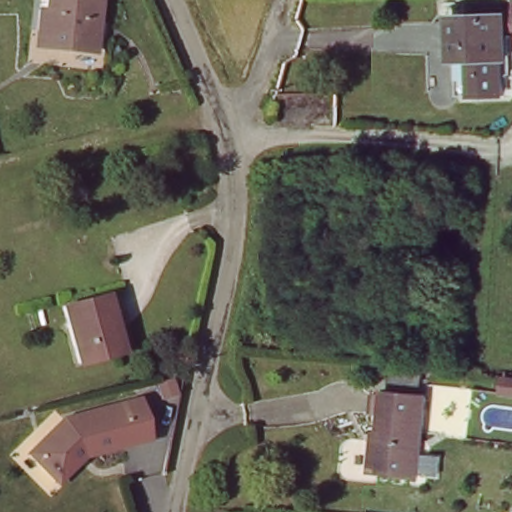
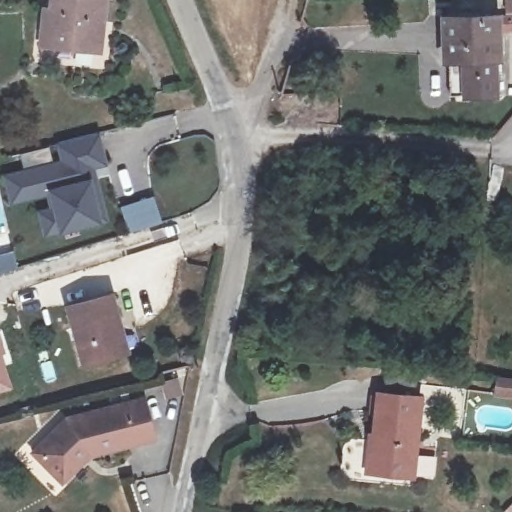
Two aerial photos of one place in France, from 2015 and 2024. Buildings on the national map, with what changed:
unchanged [(105,31),(98,30),(94,50),(59,44),(43,42),(45,22),(47,7),(55,7),(56,0),(109,0),(105,31)]
unchanged [(449,14),(494,13),(496,96),(468,97),(451,97),(450,56),(449,14)]
new [(23,169),(19,154),(49,147),(50,162),(60,159),(56,144),(100,132),(108,166),(96,169),(109,219),(101,221),(59,232),(44,237),(35,199),(11,204),(3,175),(23,169)]
new [(152,200),(160,224),(131,233),(123,209),(152,200)]
demolished [(68,228),(70,245),(39,252),(35,235),(68,228)]
new [(12,252),(18,268),(0,274),(0,255),(12,252)]
unchanged [(122,299),(126,318),(121,321),(127,352),(84,361),(74,310),(122,299)]
new [(9,354),(6,355),(9,363),(6,365),(14,388),(0,393),(0,329),(9,354)]
new [(497,395),(499,377),(512,379),(512,395),(497,395)]
unchanged [(379,445),(383,406),(387,407),(390,385),(417,388),(415,410),(424,412),(414,488),(383,485),(370,483),(374,445),(379,445)]
unchanged [(35,443),(62,417),(138,397),(148,437),(84,453),(56,479),(35,456),(35,443)]

